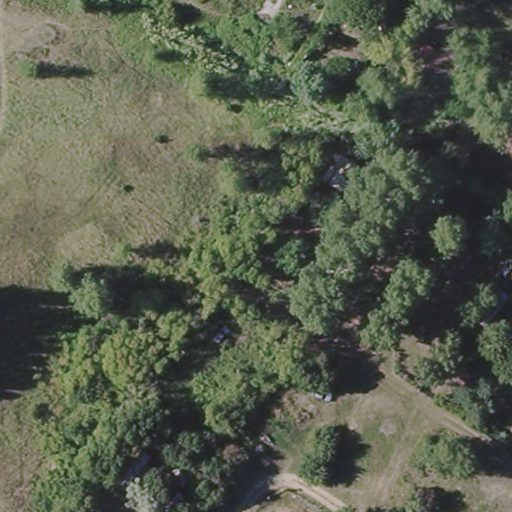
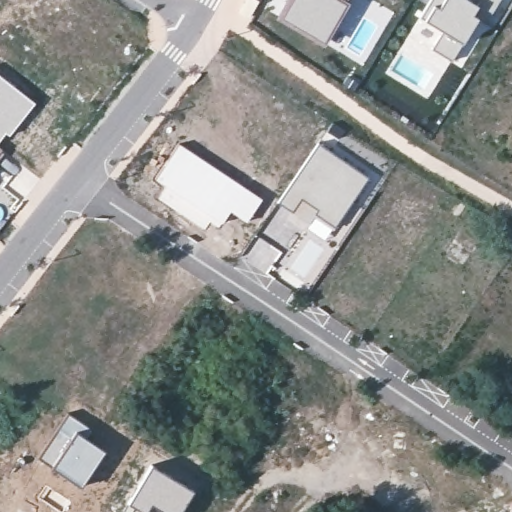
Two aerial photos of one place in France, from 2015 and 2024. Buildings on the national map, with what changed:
new [(342,1),(347,4),(324,44),(281,19),(292,0),(343,0),(342,1)]
new [(491,14),(484,10),(450,62),(427,50),(440,30),(419,17),(429,0),(500,0),(491,14)]
demolished [(432,78),(410,64),(423,42),(446,57),(432,78)]
new [(35,103),(9,135),(6,133),(0,140),(0,76),(35,103)]
demolished [(343,105),(336,102),(344,89),(350,93),(343,105)]
new [(279,204),(277,202),(318,142),(368,177),(324,238),(307,226),(286,250),(284,248),(269,239),(267,241),(263,239),(265,235),(261,232),(279,204)]
new [(155,180),(178,143),(220,169),(263,198),(246,222),(231,212),(219,228),(211,222),(205,230),(158,198),(165,187),(155,180)]
new [(0,153),(0,150),(2,151),(0,153)]
demolished [(363,167),(346,197),(316,180),(334,151),(363,167)]
demolished [(416,226),(394,211),(383,203),(400,179),(432,201),(416,226)]
demolished [(459,220),(451,215),(460,202),(467,208),(459,220)]
demolished [(512,257),(512,260),(510,258),(512,257)]
demolished [(512,265),(512,280),(505,275),(512,265)]
demolished [(508,291),(484,325),(472,318),(493,287),(508,291)]
new [(67,413),(87,426),(82,433),(104,450),(80,486),(37,458),(67,413)]
new [(194,490),(180,512),(141,512),(127,503),(150,464),(194,490)]

